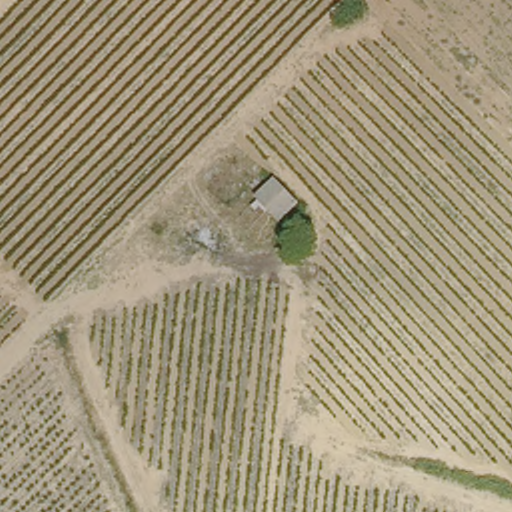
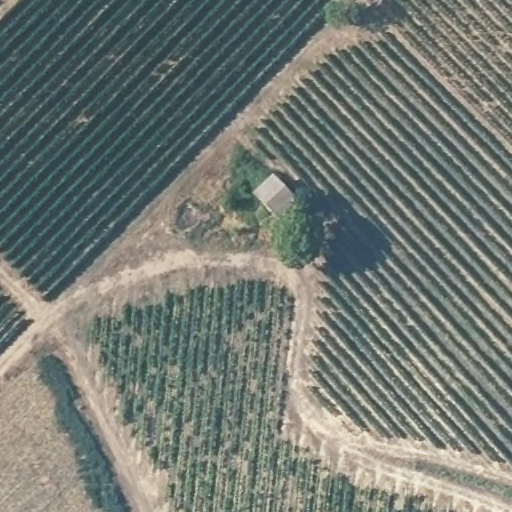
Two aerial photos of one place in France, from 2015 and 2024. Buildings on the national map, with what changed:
unchanged [(275,183),(296,206),(279,223),(259,198),(275,183)]

